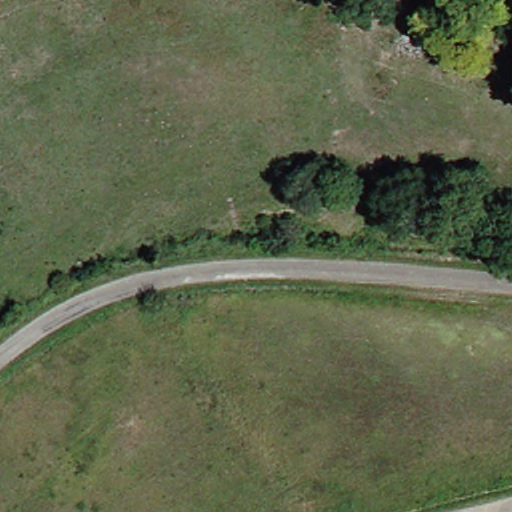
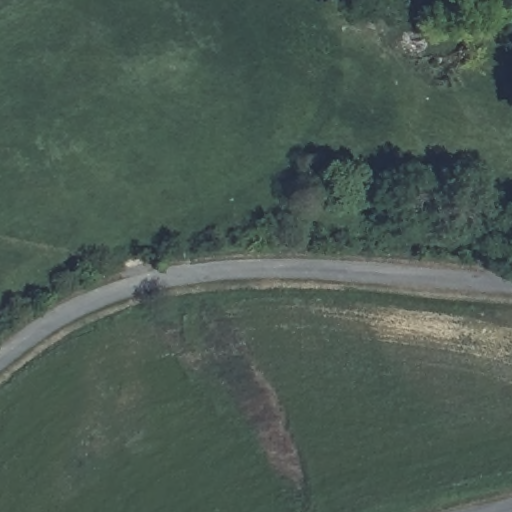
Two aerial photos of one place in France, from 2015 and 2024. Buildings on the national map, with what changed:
[]

